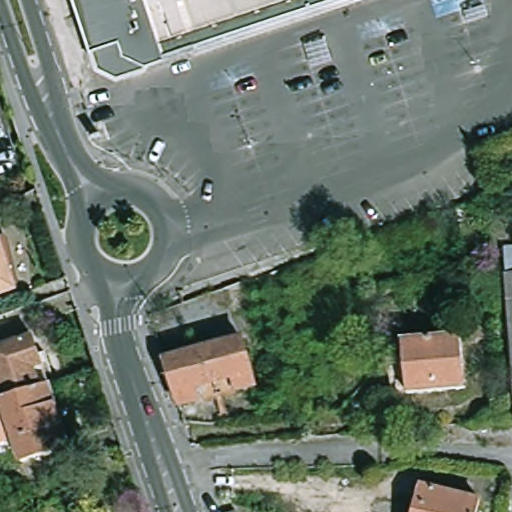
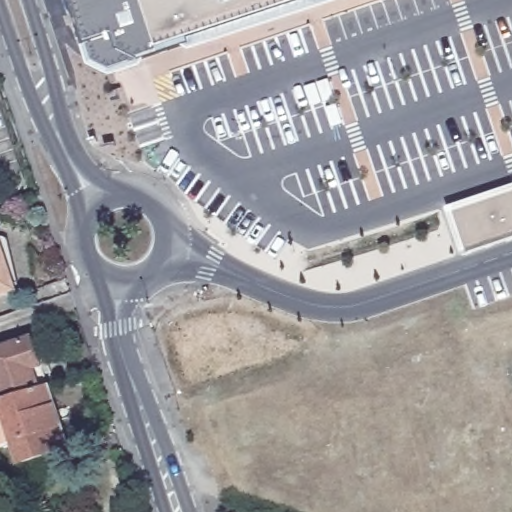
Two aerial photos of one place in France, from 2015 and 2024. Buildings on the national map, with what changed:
unchanged [(120,74),(100,64),(96,51),(88,54),(69,0),(337,0),(313,9),(264,25),(212,43),(120,74)]
new [(447,208),(512,186),(512,234),(464,251),(447,208)]
unchanged [(20,293),(0,299),(0,245),(3,244),(20,293)]
demolished [(512,281),(507,282),(505,248),(512,247),(512,281)]
demolished [(512,281),(512,336),(507,282),(512,281)]
demolished [(462,393),(407,397),(403,344),(459,340),(462,393)]
demolished [(254,390),(182,409),(171,374),(168,363),(241,343),(254,390)]
unchanged [(53,388),(2,405),(0,399),(0,356),(39,344),(53,388)]
unchanged [(24,466),(17,446),(0,452),(0,406),(2,405),(53,388),(74,450),(24,466)]
demolished [(416,512),(425,486),(482,504),(479,512),(416,512)]

